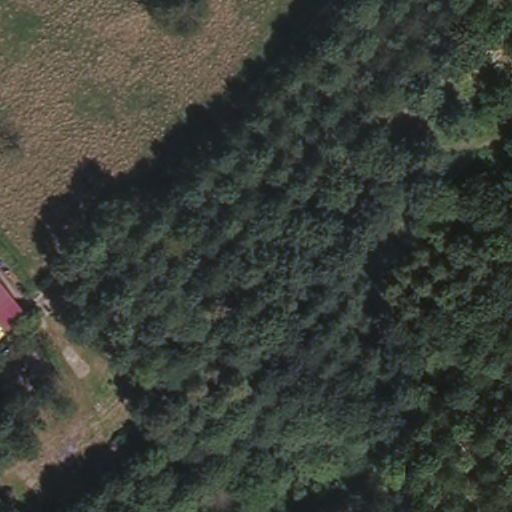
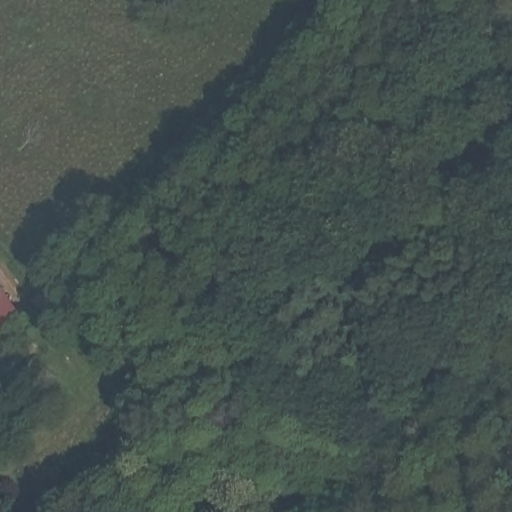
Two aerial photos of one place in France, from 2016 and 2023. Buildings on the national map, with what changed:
unchanged [(0,329),(0,282),(25,313),(1,331),(0,329)]

